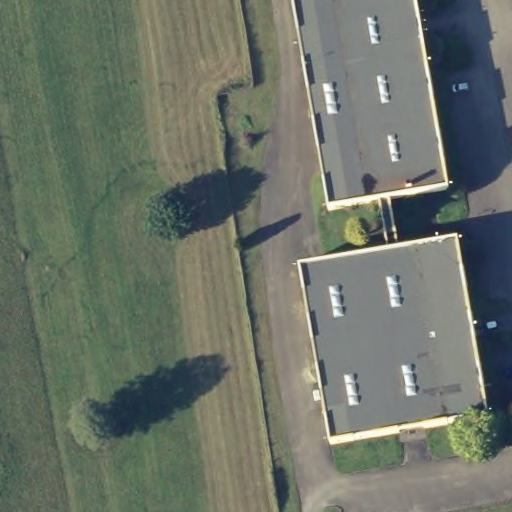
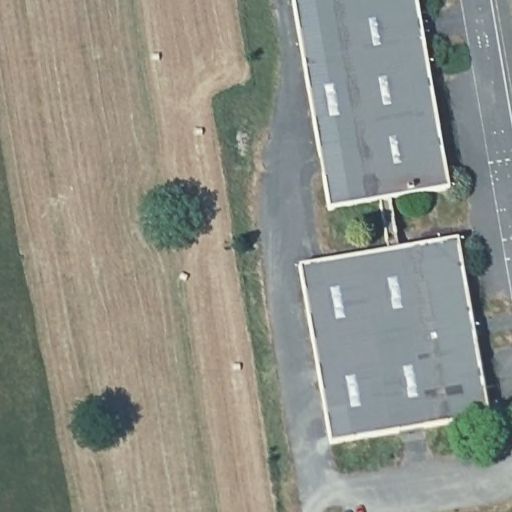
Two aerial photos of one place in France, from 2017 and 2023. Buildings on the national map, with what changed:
unchanged [(393,193),(403,244),(460,235),(494,412),(335,438),(301,262),(385,248),(375,195),(330,202),(290,0),(413,0),(447,181),(393,193)]

